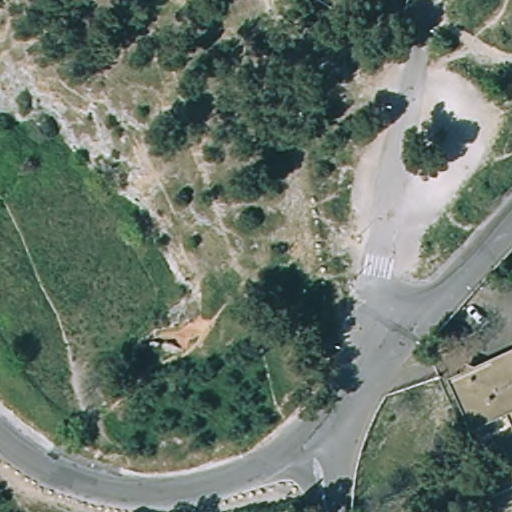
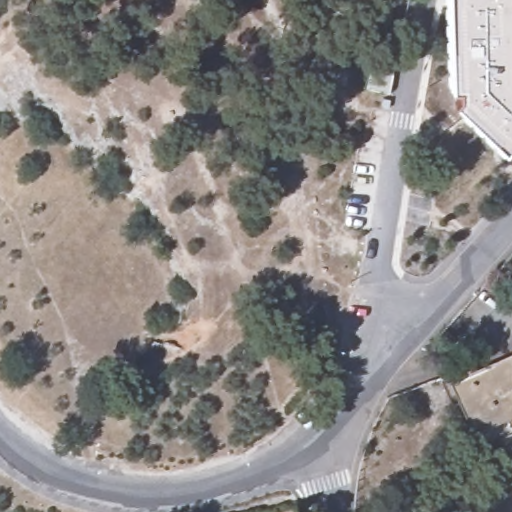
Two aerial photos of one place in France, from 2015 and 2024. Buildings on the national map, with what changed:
new [(455,98),(447,97),(447,87),(441,87),(440,68),(449,68),(447,0),(512,0),(512,137),(504,146),(455,98)]
unchanged [(474,428),(450,378),(462,372),(466,361),(477,364),(512,349),(512,422),(508,413),(474,428)]
unchanged [(499,472),(493,458),(507,451),(500,434),(512,429),(512,512),(487,512),(476,484),(499,472)]

